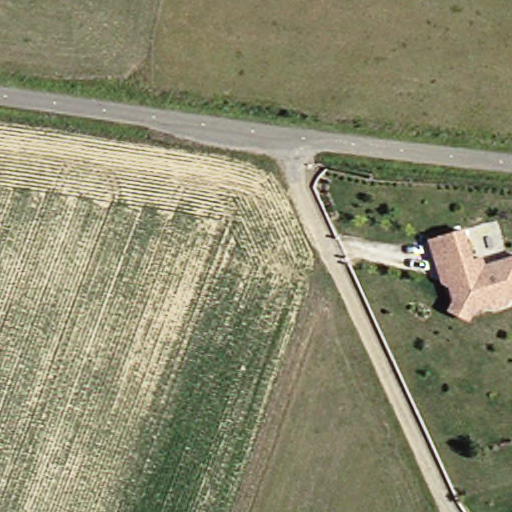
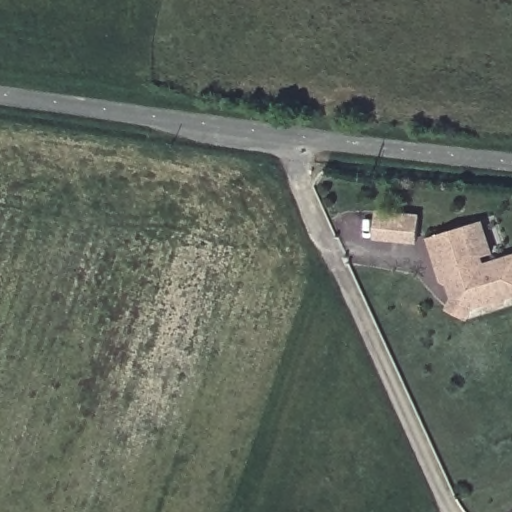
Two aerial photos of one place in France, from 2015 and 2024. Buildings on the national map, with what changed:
new [(422,216),(418,246),(376,241),(379,212),(422,216)]
unchanged [(449,299),(441,269),(436,269),(428,239),(461,231),(470,261),(477,259),(481,267),(512,259),(512,290),(511,291),(506,288),(478,296),(471,304),(468,314),(445,308),(449,299)]

